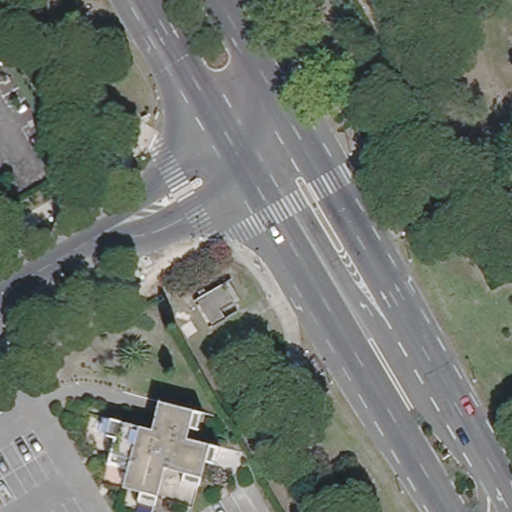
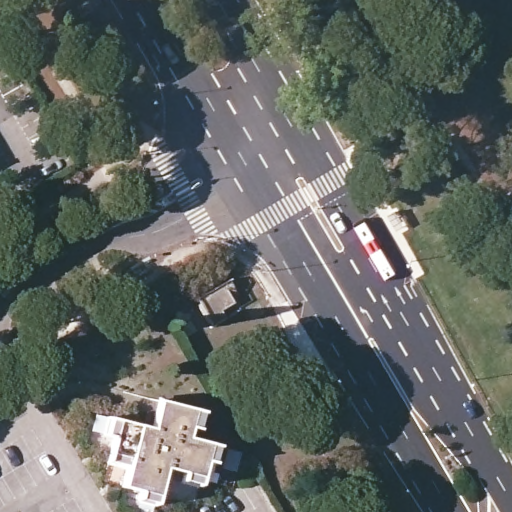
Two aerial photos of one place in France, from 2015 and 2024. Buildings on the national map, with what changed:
unchanged [(226,319),(213,327),(197,300),(223,286),(238,310),(225,317),(226,319)]
unchanged [(202,408),(198,424),(186,422),(184,434),(214,442),(210,459),(204,459),(199,482),(181,477),(182,470),(162,466),(155,499),(137,494),(139,487),(121,482),(124,462),(107,457),(113,433),(107,432),(112,415),(151,426),(159,396),(202,408)]

